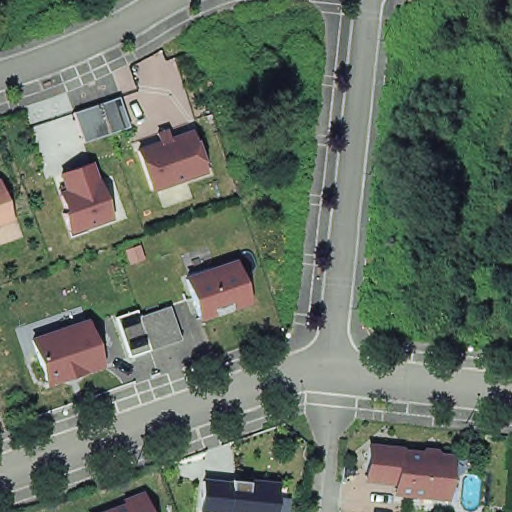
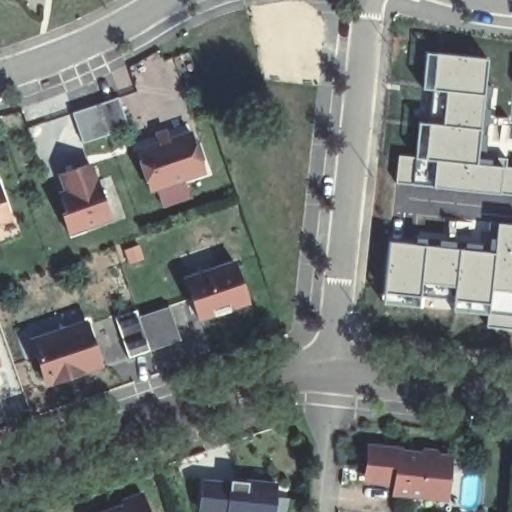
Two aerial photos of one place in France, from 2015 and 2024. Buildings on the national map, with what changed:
new [(487,58),(484,93),(481,129),(477,163),(512,167),(512,196),(395,185),(398,155),(416,157),(418,122),(442,123),(444,91),(423,89),(425,51),(487,58)]
unchanged [(120,95),(130,125),(83,143),(73,112),(120,95)]
unchanged [(160,142),(157,133),(166,130),(169,139),(193,130),(207,173),(152,192),(138,149),(160,142)]
unchanged [(60,191),(63,189),(59,174),(94,162),(98,176),(101,175),(115,218),(70,235),(60,191)]
unchanged [(15,219),(0,225),(0,180),(2,179),(15,219)]
new [(512,223),(512,331),(485,329),(488,304),(383,292),(387,240),(493,251),(495,251),(497,222),(512,223)]
unchanged [(238,261),(252,304),(198,322),(188,278),(238,261)]
unchanged [(138,309),(141,316),(172,306),(182,339),(130,356),(117,316),(138,309)]
unchanged [(90,320),(104,367),(47,386),(34,341),(90,320)]
unchanged [(402,454),(402,456),(422,458),(427,454),(439,456),(442,460),(452,461),(448,502),(405,498),(407,487),(368,483),(372,451),(402,454)]
unchanged [(234,479),(244,480),(280,484),(277,512),(221,512),(202,510),(205,480),(233,483),(234,479)]
unchanged [(127,500),(145,493),(152,512),(108,512),(128,504),(127,500)]

